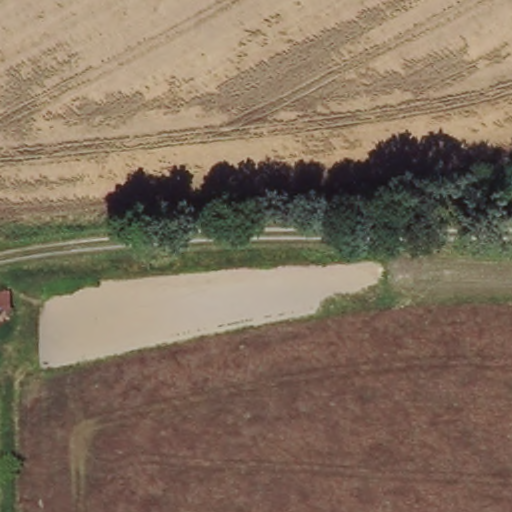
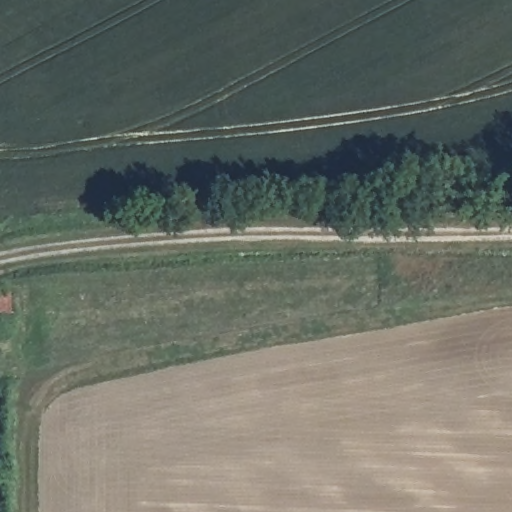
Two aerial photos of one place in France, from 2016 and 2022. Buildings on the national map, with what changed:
unchanged [(9,291),(8,311),(0,311),(0,291),(9,291)]

